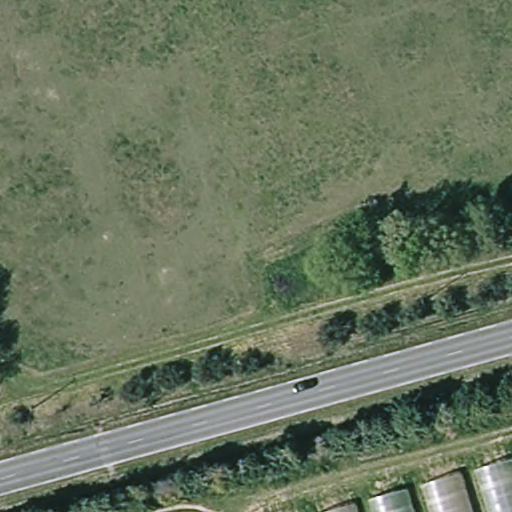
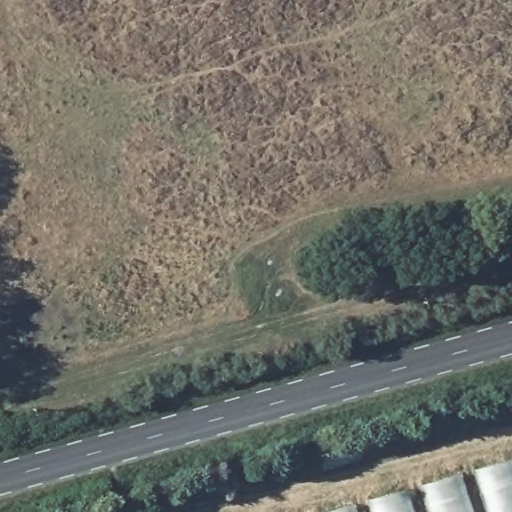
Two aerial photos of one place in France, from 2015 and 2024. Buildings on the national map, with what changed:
unchanged [(512,454),(512,512),(308,512),(512,454)]

